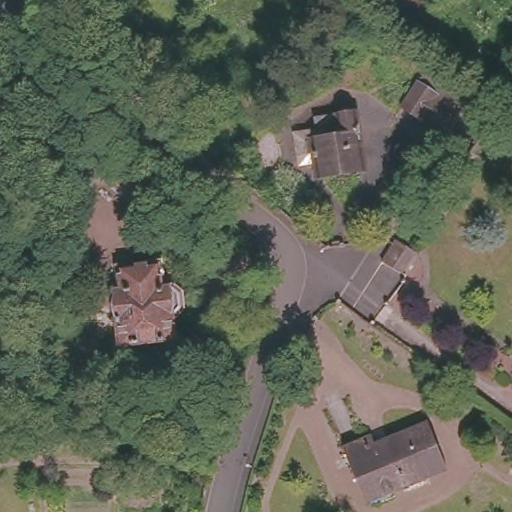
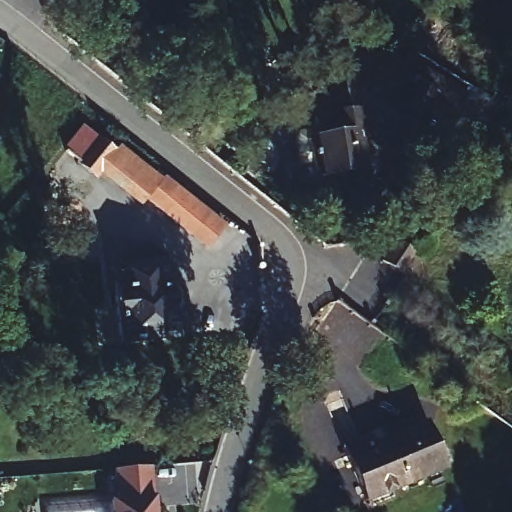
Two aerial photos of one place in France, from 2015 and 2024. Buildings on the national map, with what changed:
unchanged [(408,115),(404,121),(384,108),(387,107),(409,73),(452,102),(435,129),(433,132),(408,115)]
unchanged [(363,158),(356,167),(324,174),(316,167),(315,162),(301,163),(296,132),(299,132),(309,132),(318,130),(316,119),(356,112),(363,158)]
new [(141,206),(64,144),(81,123),(99,138),(115,140),(163,177),(166,175),(228,225),(208,249),(146,199),(141,206)]
demolished [(136,164),(132,168),(154,187),(144,200),(121,182),(118,187),(99,173),(118,149),(136,164)]
unchanged [(412,242),(399,265),(379,252),(392,229),(404,237),(412,242)]
unchanged [(168,291),(169,306),(164,312),(161,312),(163,337),(109,343),(103,283),(110,282),(109,267),(148,263),(150,278),(151,288),(161,287),(168,291)]
unchanged [(445,467),(364,500),(343,447),(371,435),(375,446),(387,442),(386,439),(428,422),(445,467)]
new [(158,512),(113,512),(111,496),(118,497),(114,468),(153,465),(156,492),(158,512)]

